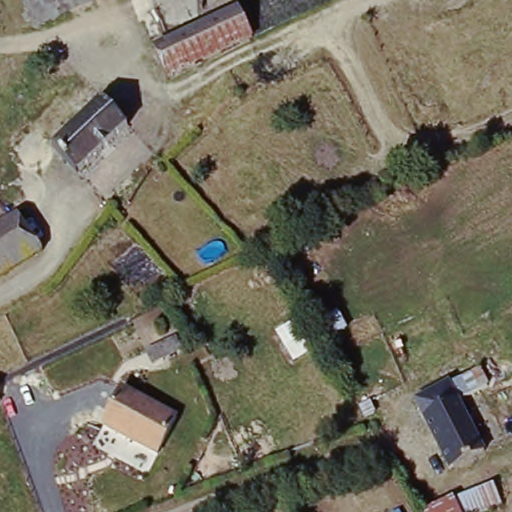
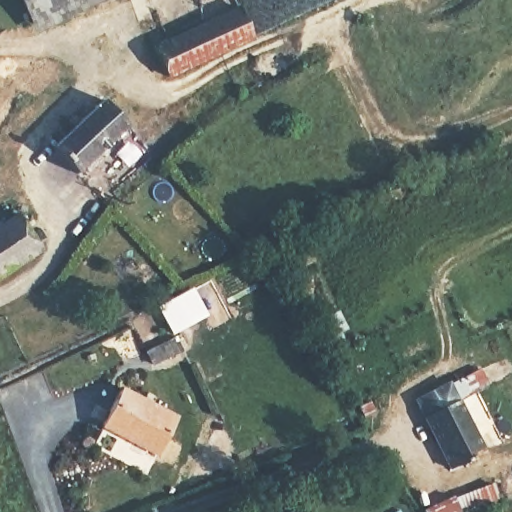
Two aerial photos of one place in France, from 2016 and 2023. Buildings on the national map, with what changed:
unchanged [(17,0),(123,0),(34,35),(17,0)]
unchanged [(235,8),(251,38),(171,85),(153,55),(235,8)]
unchanged [(104,105),(127,131),(77,175),(54,149),(104,105)]
unchanged [(19,224),(42,257),(0,283),(0,234),(19,224)]
new [(210,315),(172,335),(157,307),(194,285),(210,315)]
unchanged [(188,334),(197,350),(177,361),(170,344),(188,334)]
unchanged [(448,385),(451,388),(483,372),(493,386),(460,404),(485,454),(449,474),(414,404),(448,385)]
unchanged [(127,397),(182,426),(162,463),(108,434),(127,397)]
unchanged [(367,402),(368,402),(374,414),(361,419),(356,409),(367,402)]
unchanged [(454,505),(458,508),(496,487),(507,509),(501,512),(441,512),(454,505)]

